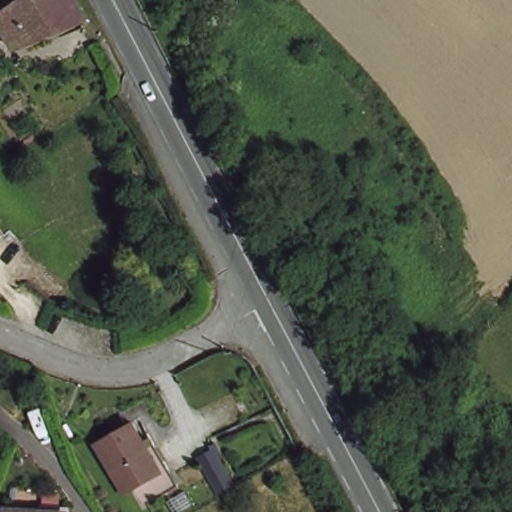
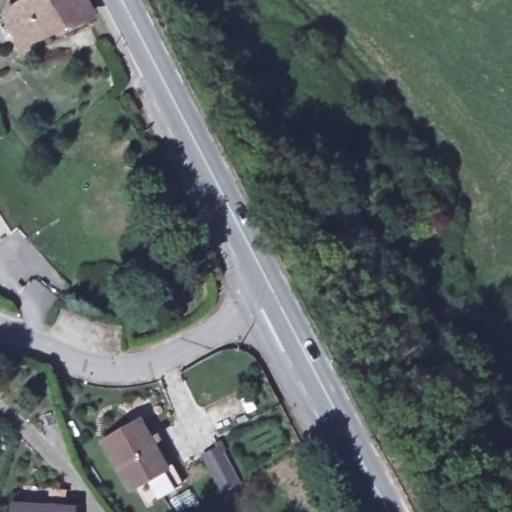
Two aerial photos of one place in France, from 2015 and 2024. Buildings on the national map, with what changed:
unchanged [(59,29),(53,21),(17,48),(0,25),(0,20),(2,19),(17,9),(12,0),(79,0),(89,20),(59,29)]
unchanged [(102,449),(134,429),(163,477),(131,495),(102,449)]
unchanged [(12,509),(36,512),(12,512),(12,509)]

